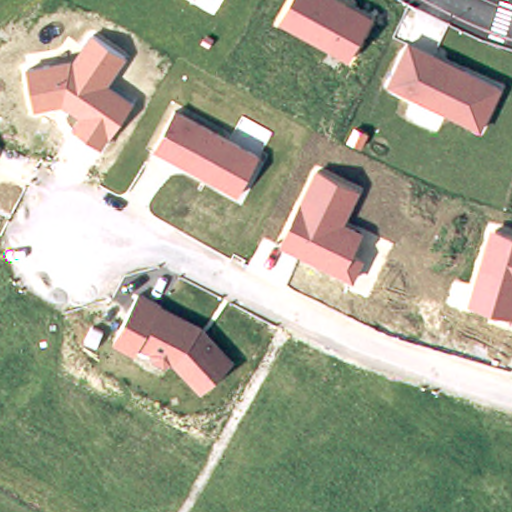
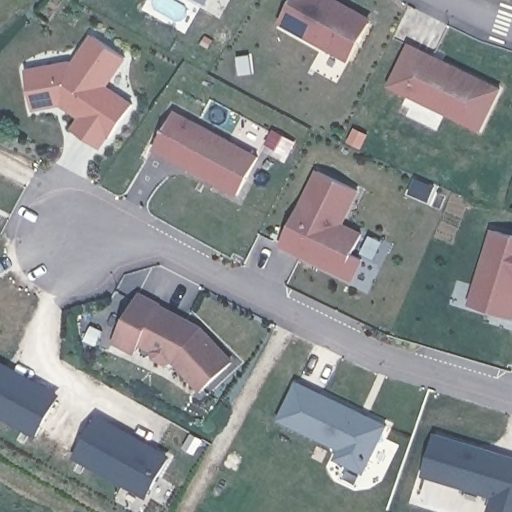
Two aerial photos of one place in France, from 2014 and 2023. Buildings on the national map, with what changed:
unchanged [(373,19),(349,63),(279,24),(293,0),(337,0),(373,19)]
unchanged [(73,61),(93,35),(127,57),(109,86),(133,101),(100,148),(73,128),(80,118),(63,104),(35,110),(28,68),(73,61)]
unchanged [(482,131),(389,86),(409,43),(502,89),(482,131)]
unchanged [(260,156),(238,197),(156,151),(178,111),(260,156)]
unchanged [(359,190),(344,223),(362,231),(353,253),(364,258),(354,280),(281,246),(316,170),(359,190)]
unchanged [(512,316),(469,304),(491,229),(512,235),(512,316)]
unchanged [(203,325),(233,359),(200,391),(173,361),(166,364),(153,357),(153,350),(139,344),(134,353),(113,342),(138,291),(203,325)]
new [(61,392),(38,436),(0,415),(0,357),(61,392)]
new [(293,387),(356,417),(354,422),(361,425),(363,420),(382,430),(359,476),(339,466),(337,454),(339,450),(277,421),(293,387)]
new [(95,415),(171,456),(149,496),(73,455),(95,415)]
new [(512,455),(512,512),(492,512),(488,511),(492,496),(422,474),(436,432),(512,455)]

